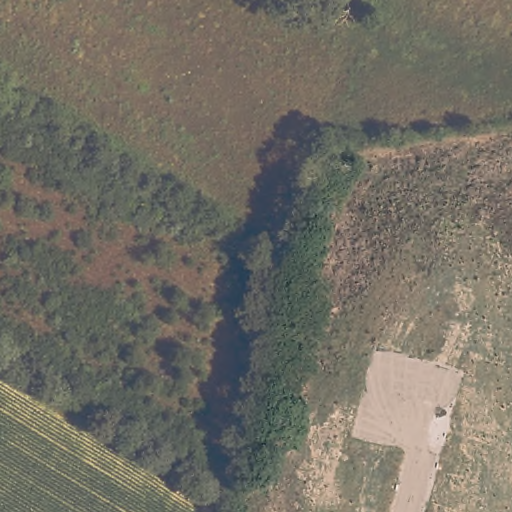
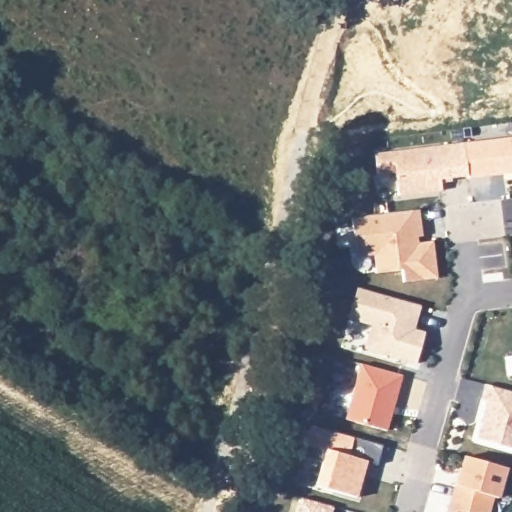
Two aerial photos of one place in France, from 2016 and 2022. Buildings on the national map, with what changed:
new [(512,137),(512,173),(467,179),(467,176),(463,144),(512,137)]
new [(463,144),(467,176),(440,179),(441,190),(398,195),(395,172),(377,174),(375,154),(463,144)]
new [(419,209),(422,236),(406,238),(407,245),(433,242),(437,278),(403,282),(402,270),(377,273),(374,255),(357,257),(352,217),(419,209)]
new [(357,288),(420,305),(414,330),(424,333),(416,363),(364,349),(371,325),(349,319),(357,288)]
new [(363,364),(404,376),(389,431),(347,420),(363,364)]
new [(486,402),(481,401),(485,384),(512,392),(512,449),(476,439),(486,402)]
unchanged [(377,464),(367,461),(357,498),(314,486),(320,462),(300,456),(310,426),(382,445),(377,464)]
unchanged [(508,469),(494,512),(447,512),(462,456),(508,469)]
new [(335,507),(334,512),(295,512),(299,496),(335,507)]

